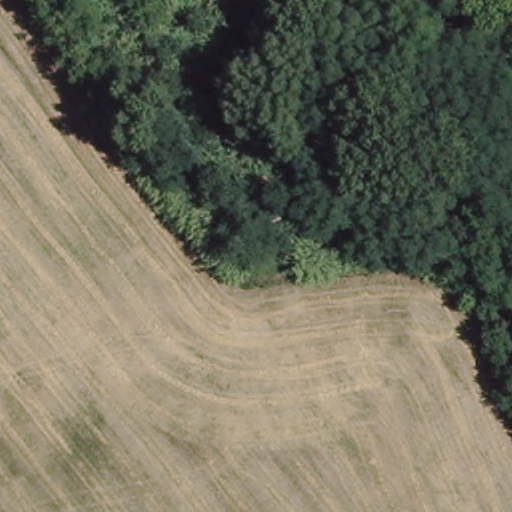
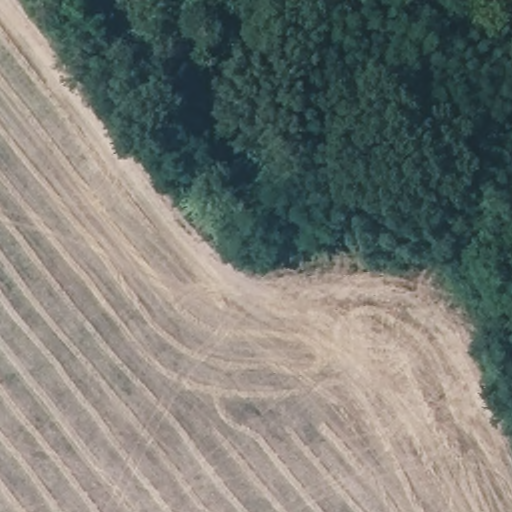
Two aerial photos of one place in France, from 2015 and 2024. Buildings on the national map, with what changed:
unchanged [(280,226),(252,233),(239,185),(266,178),(280,226)]

